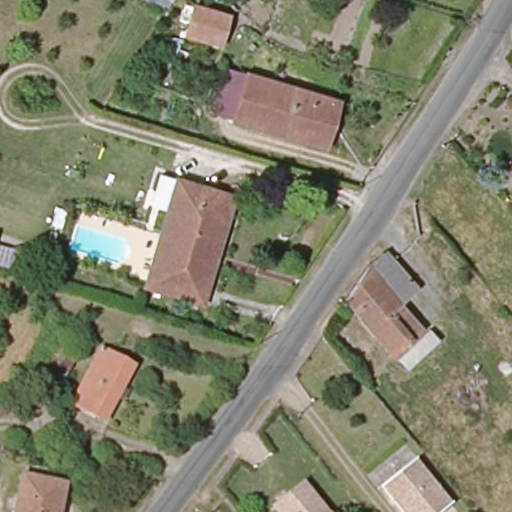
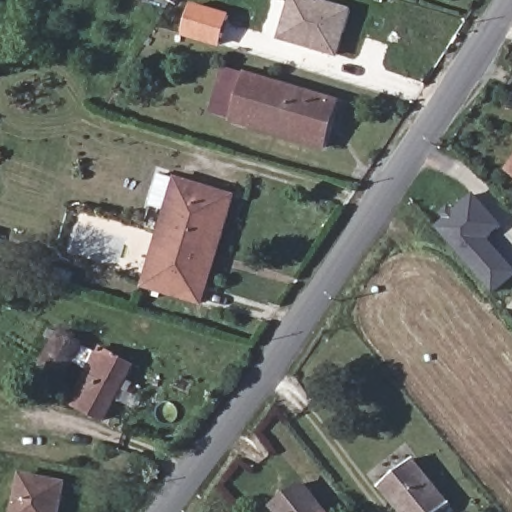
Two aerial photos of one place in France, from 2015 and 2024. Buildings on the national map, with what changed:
new [(279,40),(290,0),(321,0),(354,9),(339,59),(279,40)]
unchanged [(184,31),(194,4),(227,14),(219,42),(184,31)]
unchanged [(229,121),(213,114),(226,69),(244,74),(245,68),(341,98),(326,150),(229,121)]
unchanged [(509,159),(512,156),(512,163),(509,159)]
unchanged [(172,172),(214,188),(230,193),(224,211),(218,234),(159,217),(172,172)]
new [(477,192),(503,223),(488,236),(512,265),(512,274),(494,289),(439,224),(477,192)]
unchanged [(197,299),(139,284),(159,217),(218,234),(197,299)]
unchanged [(0,244),(18,249),(10,272),(0,269),(0,244)]
demolished [(389,248),(418,285),(390,309),(411,335),(392,352),(345,295),(362,272),(389,248)]
unchanged [(78,348),(59,377),(37,364),(58,334),(78,348)]
unchanged [(132,364),(104,418),(72,402),(98,348),(132,364)]
unchanged [(433,512),(399,512),(376,485),(414,454),(449,499),(433,512)]
unchanged [(61,486),(55,512),(12,512),(19,476),(61,486)]
unchanged [(268,507),(297,482),(321,512),(272,512),(268,507)]

